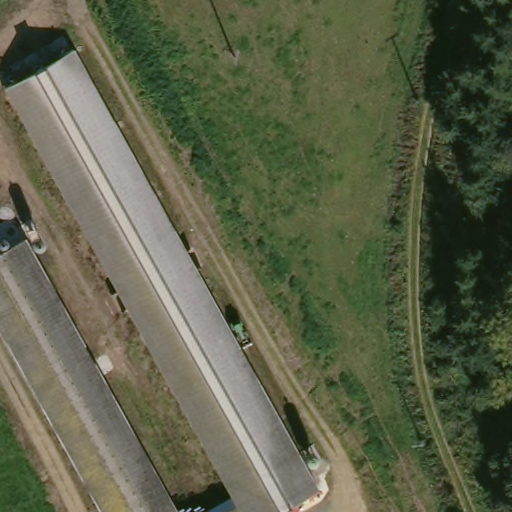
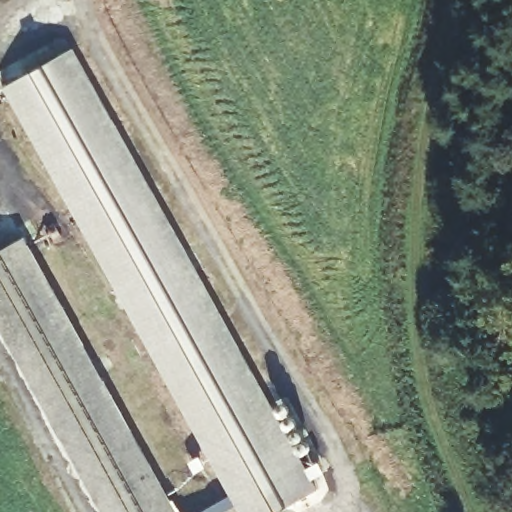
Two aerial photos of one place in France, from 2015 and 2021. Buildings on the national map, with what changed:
unchanged [(279,512),(243,512),(6,85),(71,50),(317,490),(279,512)]
unchanged [(110,512),(0,315),(0,253),(28,237),(181,512),(110,512)]

